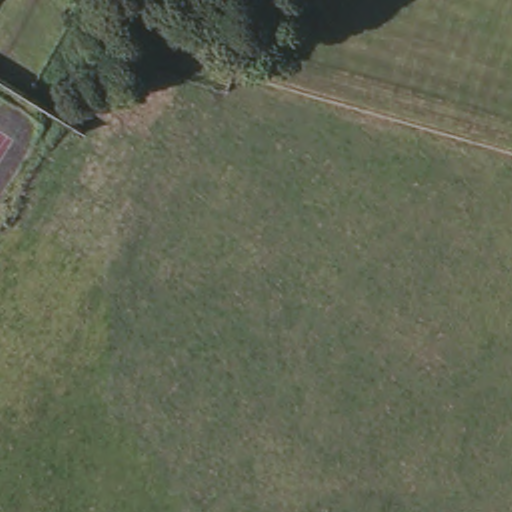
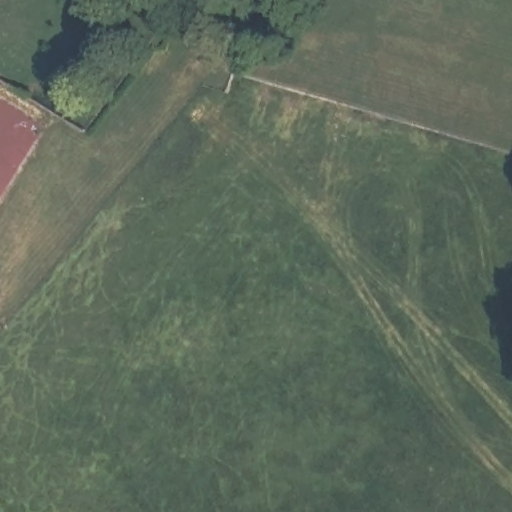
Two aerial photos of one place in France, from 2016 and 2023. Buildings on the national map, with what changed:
unchanged [(6,59),(28,73),(30,70),(91,109),(92,114),(81,129),(0,78),(0,69),(6,59)]

